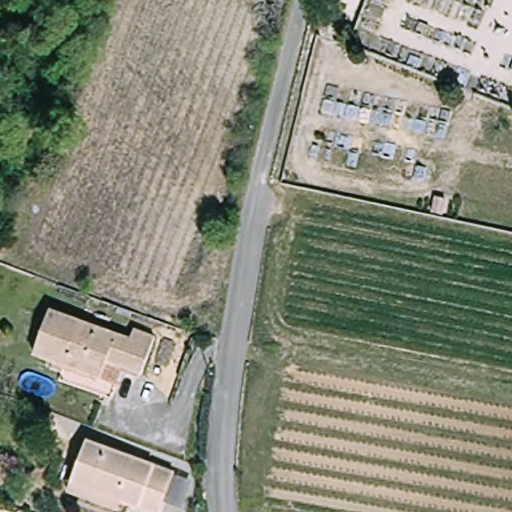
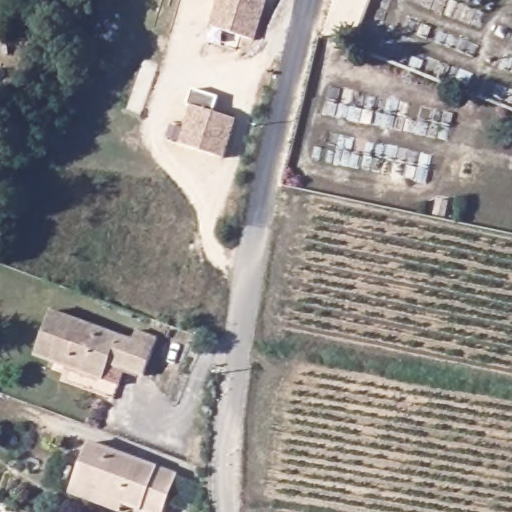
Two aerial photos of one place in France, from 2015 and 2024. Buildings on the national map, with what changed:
new [(256,42),(211,28),(219,0),(259,0),(268,3),(256,42)]
new [(219,97),(215,113),(236,120),(223,160),(181,146),(193,107),(187,106),(193,90),(219,97)]
unchanged [(106,385),(38,360),(58,311),(128,339),(131,332),(159,345),(143,380),(127,374),(113,368),(106,385)]
unchanged [(77,496),(82,484),(99,445),(183,475),(168,512),(154,512),(128,502),(123,512),(117,512),(77,496)]

